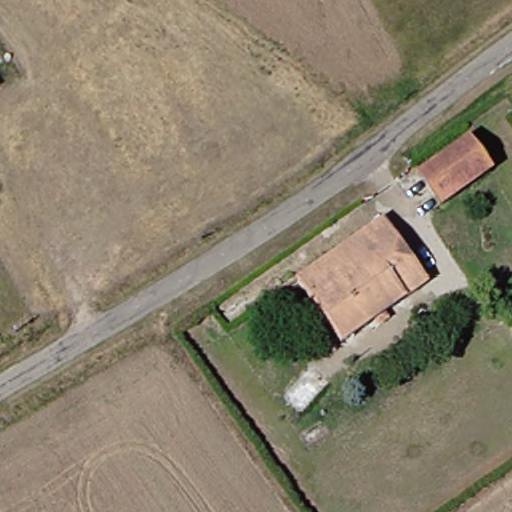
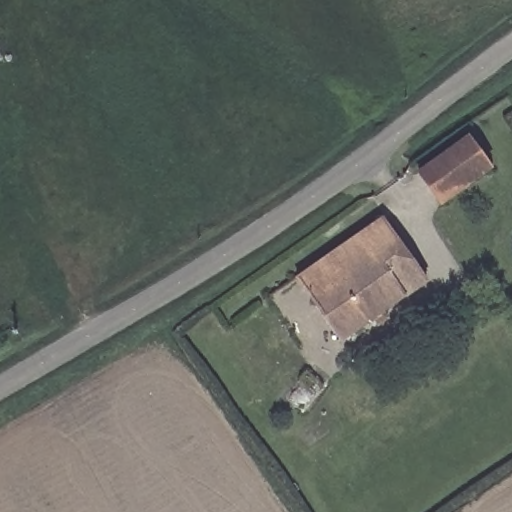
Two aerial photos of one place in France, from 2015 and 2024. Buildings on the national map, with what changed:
unchanged [(0,85),(0,77),(4,83),(0,85)]
unchanged [(495,170),(446,204),(426,175),(475,139),(495,170)]
unchanged [(387,219),(429,278),(343,341),(332,326),(301,283),(387,219)]
unchanged [(332,326),(302,348),(271,306),(301,283),(332,326)]

